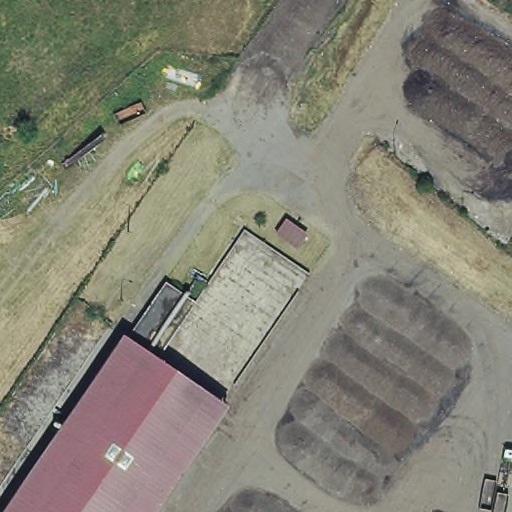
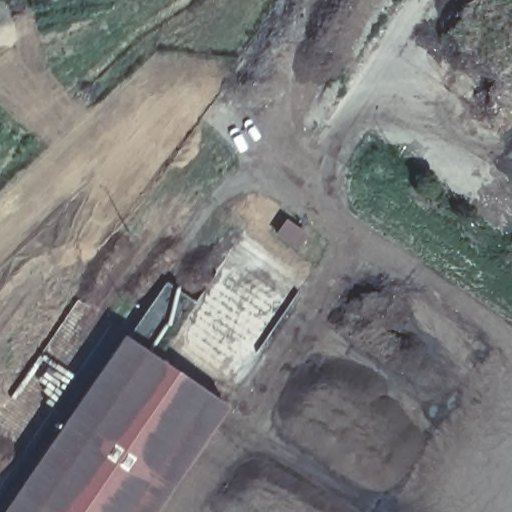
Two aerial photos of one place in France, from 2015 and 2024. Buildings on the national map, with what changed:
unchanged [(312,233),(297,251),(271,235),(286,212),(312,233)]
unchanged [(163,278),(197,297),(160,358),(127,335),(163,278)]
unchanged [(160,358),(236,410),(164,512),(8,512),(127,335),(160,358)]

